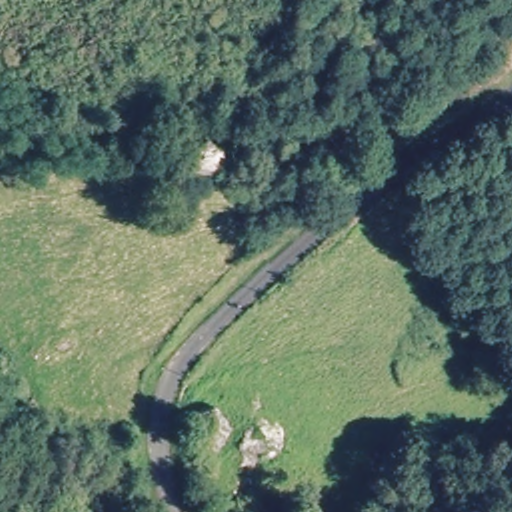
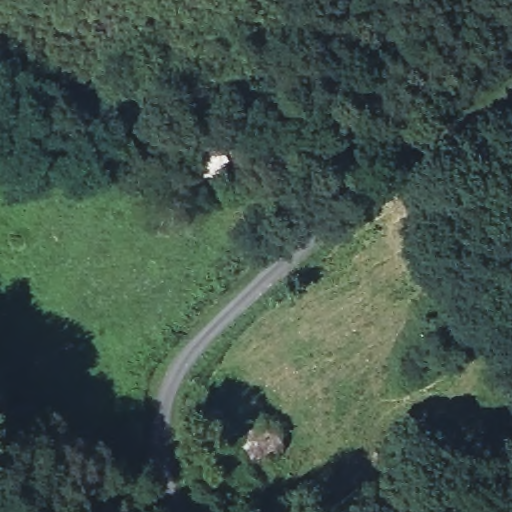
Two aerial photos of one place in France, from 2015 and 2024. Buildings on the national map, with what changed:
unchanged [(239,431),(216,462),(191,439),(212,407),(239,431)]

